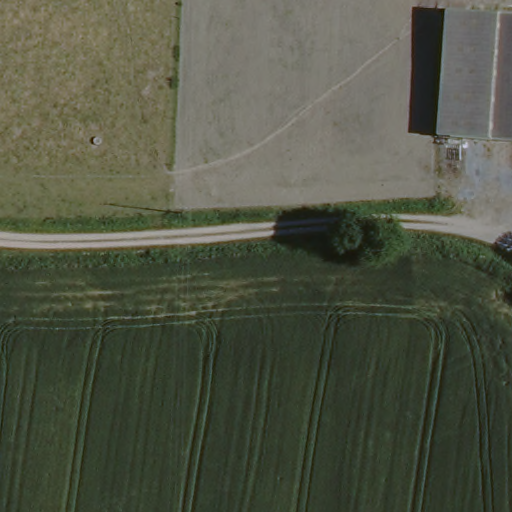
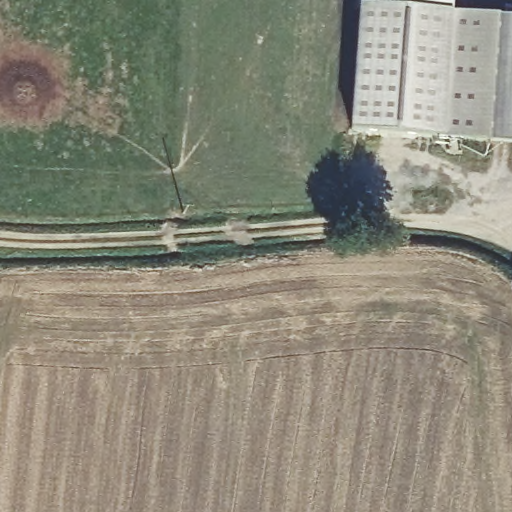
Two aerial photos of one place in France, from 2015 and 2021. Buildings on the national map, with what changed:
new [(351,130),(358,6),(447,12),(437,136),(351,130)]
unchanged [(487,136),(437,136),(447,12),(497,12),(487,136)]
unchanged [(487,136),(497,12),(512,12),(512,140),(487,136)]

